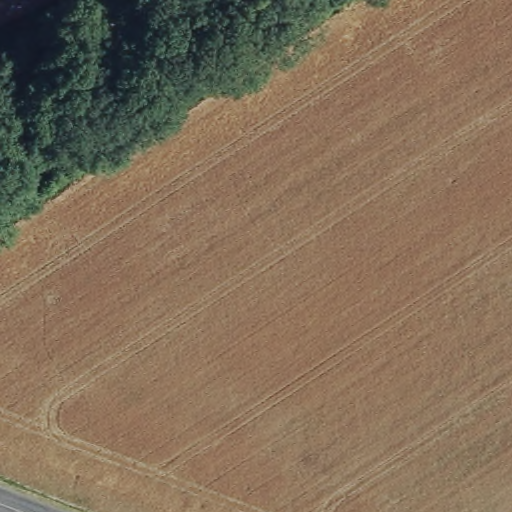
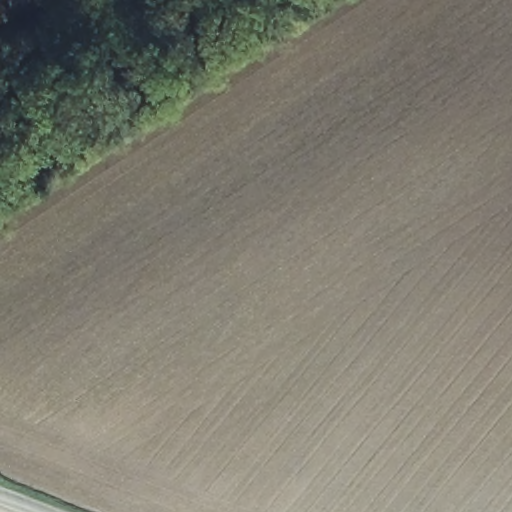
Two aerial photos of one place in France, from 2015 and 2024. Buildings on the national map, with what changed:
unchanged [(0,0),(45,0),(0,21),(0,0)]

